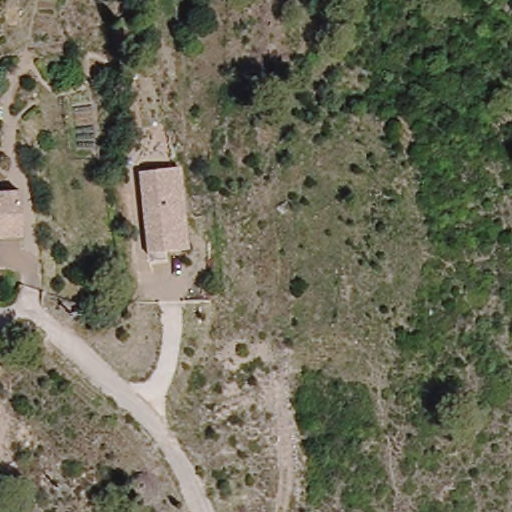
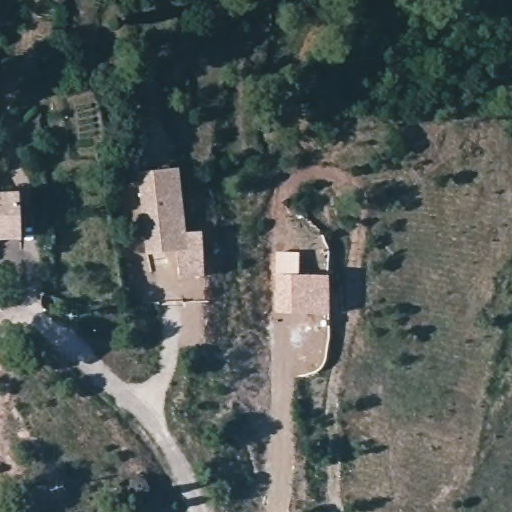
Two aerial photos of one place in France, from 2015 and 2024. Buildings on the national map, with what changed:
unchanged [(139,170),(181,167),(190,247),(148,252),(139,170)]
unchanged [(0,240),(0,191),(20,190),(23,239),(0,240)]
new [(275,273),(299,273),(329,274),(329,321),(303,321),(302,316),(273,315),(275,273)]

